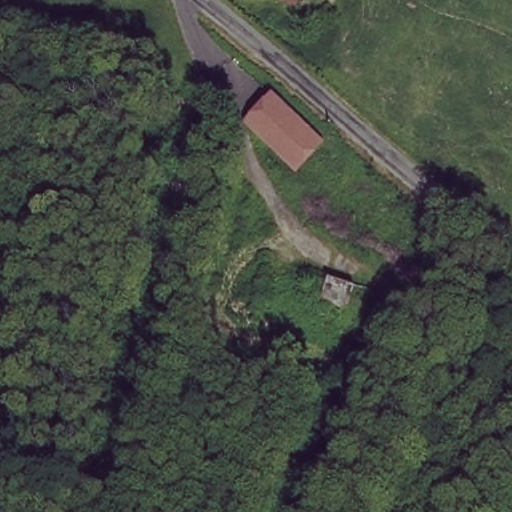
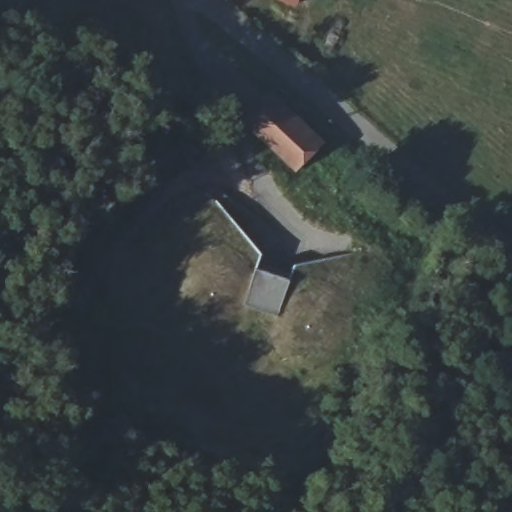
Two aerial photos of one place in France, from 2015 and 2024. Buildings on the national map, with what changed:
unchanged [(324,140),(296,171),(244,121),(273,91),(324,140)]
new [(278,314),(246,304),(256,269),(289,279),(278,314)]

